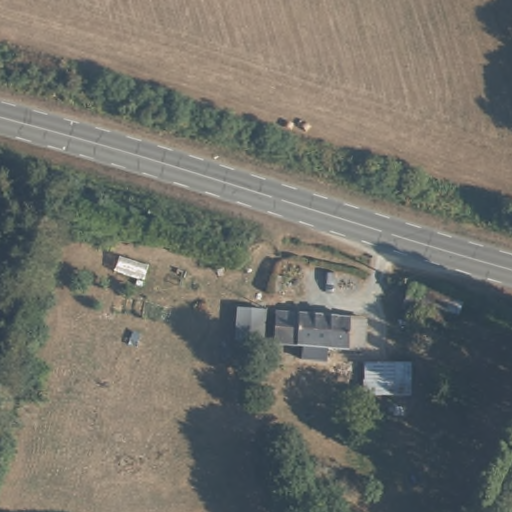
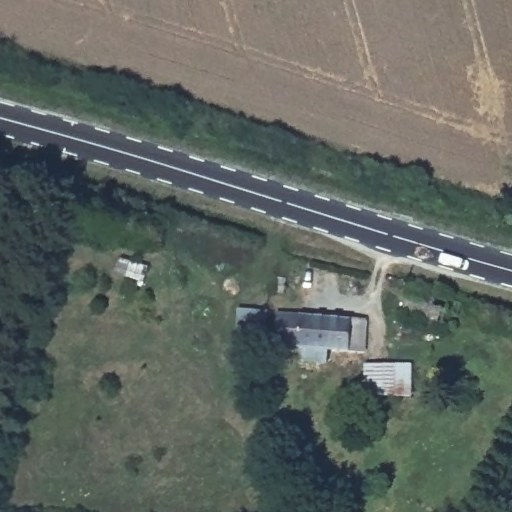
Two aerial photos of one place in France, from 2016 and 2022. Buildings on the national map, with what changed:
unchanged [(440,328),(405,317),(415,281),(452,293),(440,328)]
unchanged [(235,343),(236,305),(270,308),(265,343),(235,343)]
unchanged [(284,312),(340,312),(367,312),(367,344),(340,345),(283,344),(284,312)]
unchanged [(361,373),(336,373),(337,356),(361,356),(361,373)]
unchanged [(265,357),(264,373),(253,373),(251,357),(265,357)]
unchanged [(368,390),(368,360),(394,360),(393,391),(368,390)]

